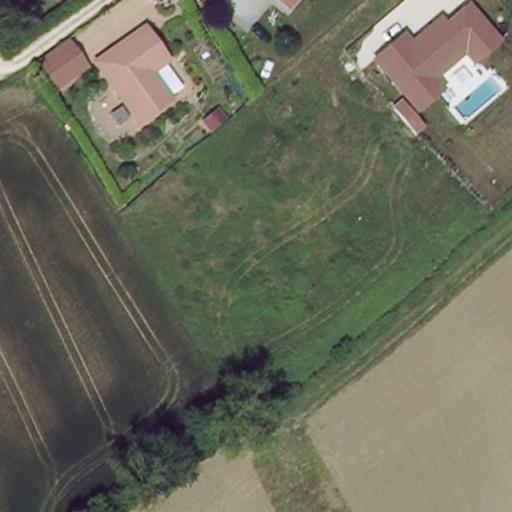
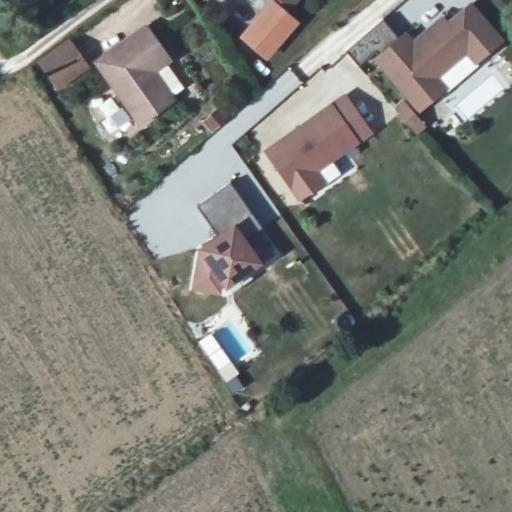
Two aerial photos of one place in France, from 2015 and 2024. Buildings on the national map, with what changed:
new [(284,8),(300,21),(269,59),(240,35),(270,0),(285,0),(288,3),(284,8)]
unchanged [(285,0),(290,0),(288,3),(285,0)]
unchanged [(406,28),(415,38),(442,13),(448,19),(470,1),(504,40),(477,64),(467,54),(438,76),(446,90),(418,113),(373,56),(406,28)]
unchanged [(173,58),(156,69),(176,97),(143,120),(99,60),(148,24),(173,58)]
new [(70,43),(87,67),(58,88),(41,63),(70,43)]
new [(301,126),(341,98),(359,122),(366,133),(353,143),(311,173),(319,184),(296,199),(264,153),(292,133),(301,126)]
new [(219,279),(216,293),(193,289),(199,251),(216,239),(194,208),(227,184),(260,229),(252,234),(268,255),(253,266),(224,287),(219,279)]

